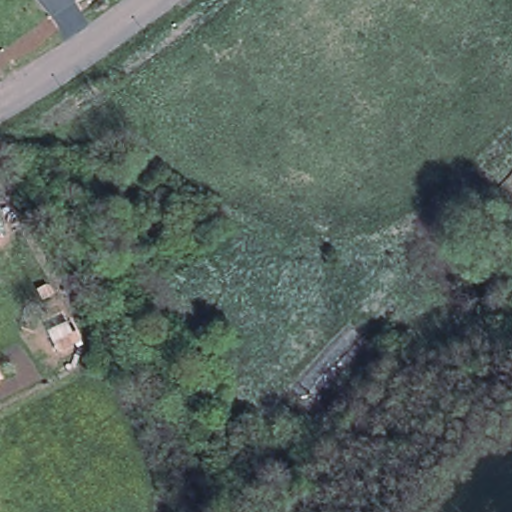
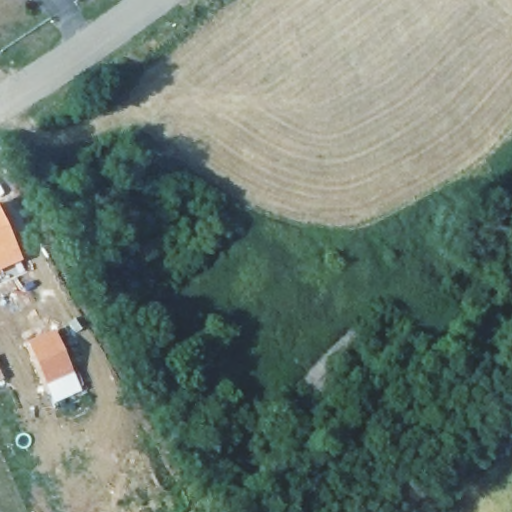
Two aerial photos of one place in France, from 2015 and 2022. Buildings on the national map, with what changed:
new [(0,270),(0,205),(24,260),(0,270)]
new [(57,330),(76,373),(47,385),(30,342),(57,330)]
unchanged [(277,421),(365,332),(387,358),(300,444),(277,421)]

